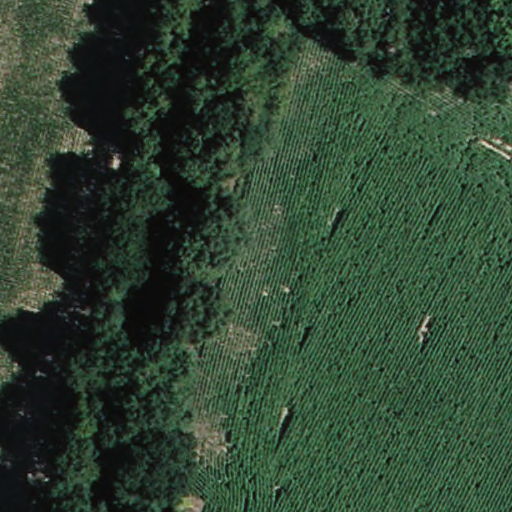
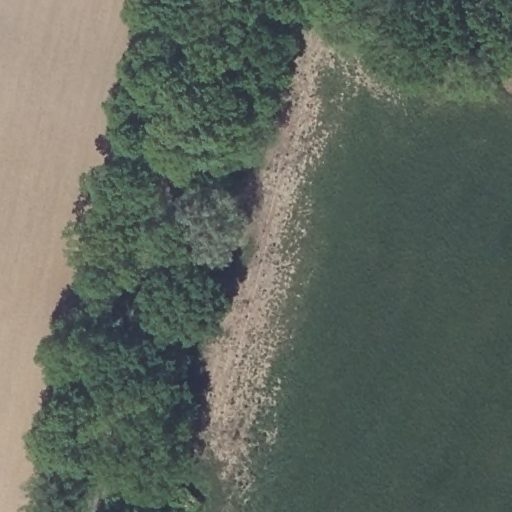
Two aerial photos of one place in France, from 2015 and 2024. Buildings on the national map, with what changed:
[]

